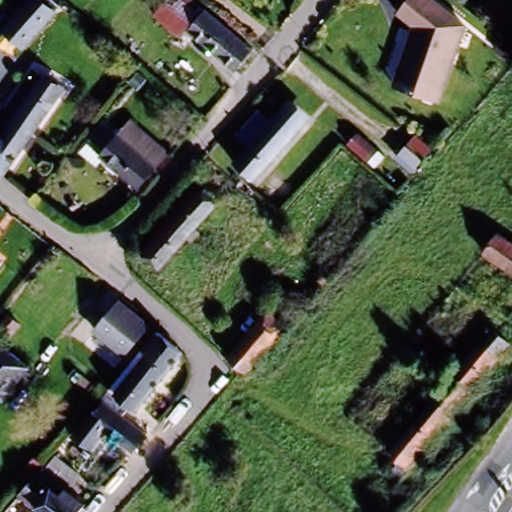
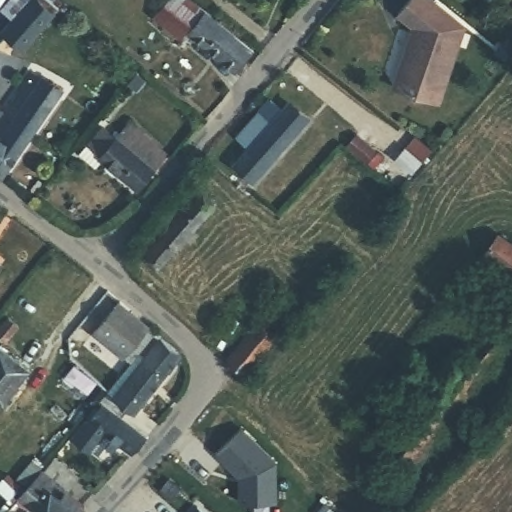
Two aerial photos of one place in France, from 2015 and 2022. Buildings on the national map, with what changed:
unchanged [(1,34),(5,30),(28,0),(35,0),(50,12),(22,50),(1,34)]
unchanged [(175,30),(167,24),(155,12),(165,0),(195,0),(205,7),(251,45),(235,66),(188,28),(181,22),(175,30)]
unchanged [(432,103),(390,88),(410,28),(392,13),(402,0),(427,0),(459,26),(432,103)]
unchanged [(23,91),(37,71),(47,78),(67,91),(12,173),(8,180),(0,174),(0,107),(8,114),(23,91)]
unchanged [(131,81),(136,75),(145,82),(140,90),(131,81)]
demolished [(150,95),(155,88),(164,95),(159,102),(150,95)]
unchanged [(231,168),(246,150),(235,140),(256,115),(267,126),(283,107),(302,123),(250,184),(231,168)]
unchanged [(408,172),(396,161),(435,114),(450,126),(408,172)]
unchanged [(380,140),(362,160),(342,144),(360,123),(380,140)]
unchanged [(87,151),(102,134),(115,145),(122,135),(158,167),(150,176),(135,193),(87,151)]
unchanged [(156,270),(142,257),(136,253),(190,191),(195,195),(210,209),(156,270)]
unchanged [(486,256),(498,236),(509,244),(512,246),(512,274),(486,256)]
unchanged [(146,330),(123,360),(91,334),(115,305),(146,330)]
unchanged [(270,316),(285,328),(245,375),(228,360),(265,313),(270,316)]
unchanged [(23,332),(11,348),(0,339),(0,336),(10,322),(23,332)]
unchanged [(475,383),(452,410),(435,397),(479,343),(482,338),(493,325),(510,340),(496,357),(486,370),(475,383)]
unchanged [(102,405),(100,403),(106,395),(154,335),(159,339),(178,355),(130,412),(126,409),(120,418),(144,436),(130,453),(90,424),(102,405)]
unchanged [(0,351),(13,360),(30,373),(22,383),(6,405),(0,400),(0,351)]
unchanged [(399,490),(375,470),(390,451),(435,397),(452,410),(406,465),(414,472),(399,490)]
new [(279,463),(278,501),(239,502),(239,480),(216,453),(244,427),(279,463)]
unchanged [(35,512),(23,502),(14,495),(25,482),(28,479),(35,471),(37,473),(49,459),(72,478),(60,493),(78,507),(74,512),(35,512)]
new [(191,512),(197,505),(206,512),(191,512)]

